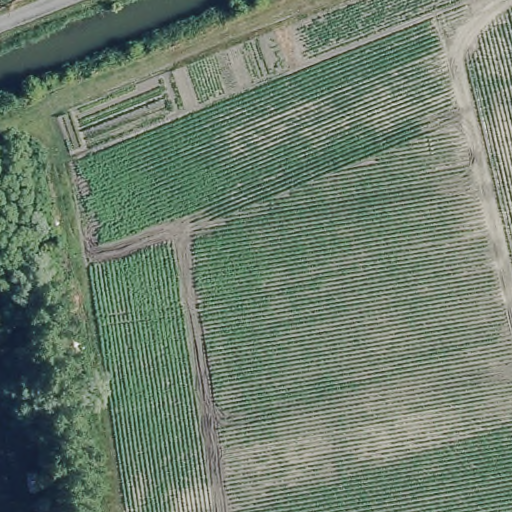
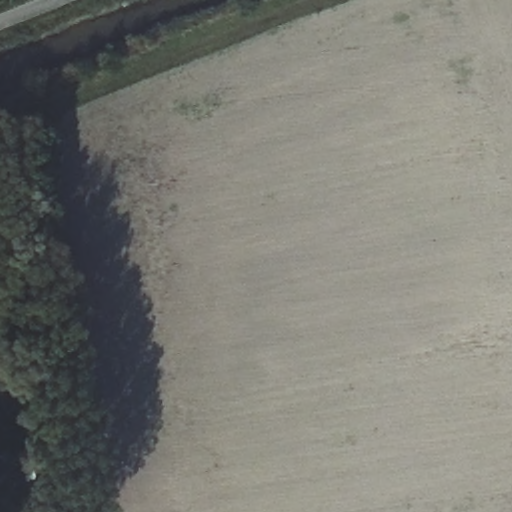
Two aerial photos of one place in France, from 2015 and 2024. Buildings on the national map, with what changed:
unchanged [(0,341),(0,303),(5,301),(18,335),(0,341)]

